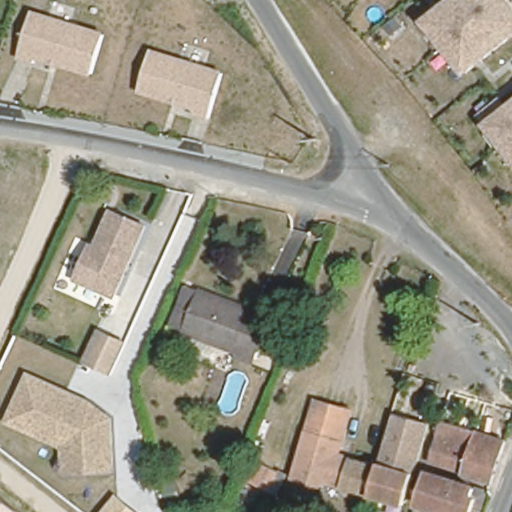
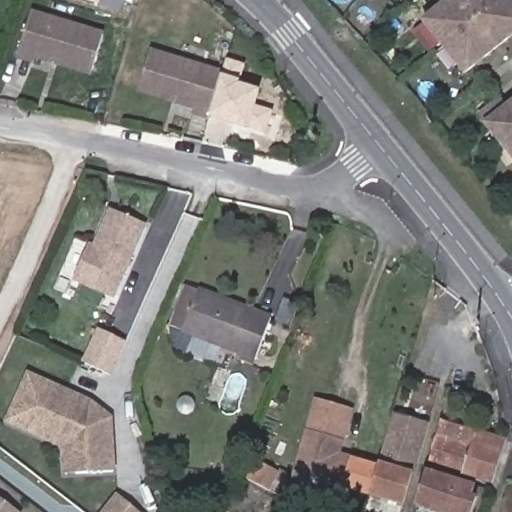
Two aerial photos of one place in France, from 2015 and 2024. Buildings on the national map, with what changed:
new [(100,7),(76,0),(102,0),(100,7)]
unchanged [(465,76),(420,21),(448,0),(512,0),(512,39),(465,76)]
unchanged [(91,76),(37,61),(35,66),(20,61),(35,11),(104,31),(91,76)]
unchanged [(210,121),(191,117),(192,111),(139,95),(151,52),(224,71),(210,121)]
new [(226,60),(246,65),(241,80),(240,85),(261,90),(256,106),(273,111),(266,136),(248,130),(210,121),(223,75),(224,71),(226,60)]
unchanged [(478,114),(498,98),(507,104),(512,99),(512,155),(478,114)]
unchanged [(145,225),(111,297),(70,281),(87,241),(92,243),(106,209),(145,225)]
unchanged [(255,359),(188,333),(169,325),(185,285),(204,292),(271,317),(255,359)]
unchanged [(95,328),(124,341),(109,375),(78,360),(95,328)]
unchanged [(25,371),(110,414),(115,471),(64,472),(60,448),(2,420),(25,371)]
unchanged [(390,417),(396,418),(403,393),(420,398),(412,423),(425,427),(400,506),(366,496),(375,469),(390,417)]
unchanged [(324,482),(322,488),(295,479),(318,401),(350,411),(335,458),(375,469),(366,496),(324,482)]
unchanged [(489,482),(425,462),(437,420),(502,440),(489,482)]
unchanged [(471,487),(484,490),(477,512),(433,512),(411,505),(421,471),(471,487)]
unchanged [(0,512),(0,496),(20,512),(0,512)]
unchanged [(137,512),(106,512),(120,497),(137,512)]

